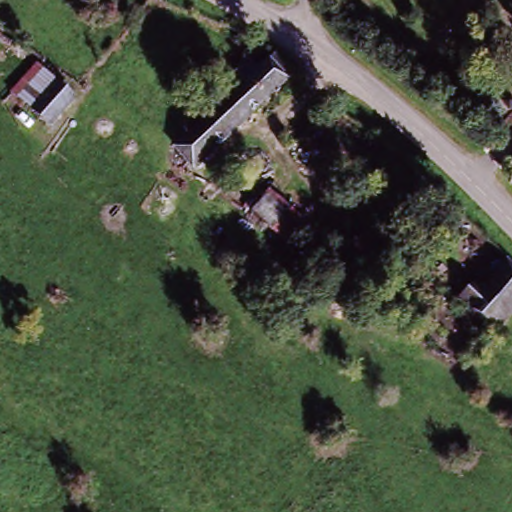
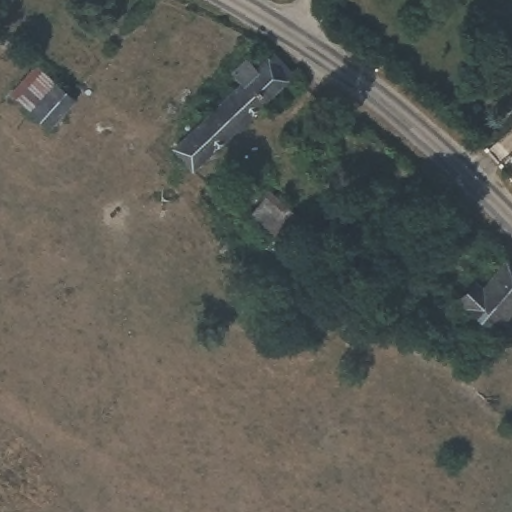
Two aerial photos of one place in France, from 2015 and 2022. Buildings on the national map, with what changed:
unchanged [(236,62),(247,73),(260,60),(283,83),(190,176),(164,150),(228,87),(220,79),(236,62)]
unchanged [(47,127),(21,105),(6,90),(31,61),(47,75),(73,98),(47,127)]
unchanged [(252,207),(265,192),(290,213),(276,229),(252,207)]
unchanged [(468,276),(480,286),(496,269),(512,285),(512,308),(491,333),(449,299),(468,276)]

